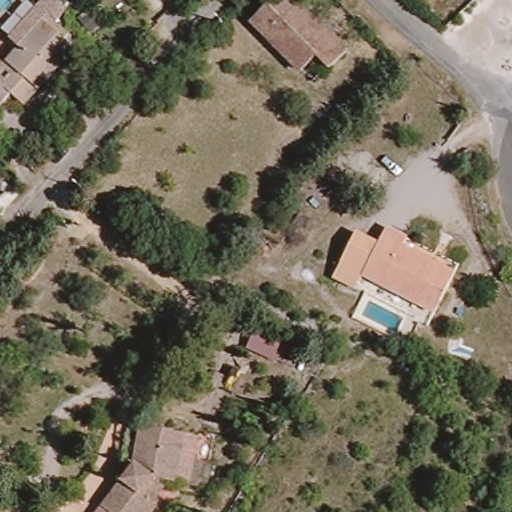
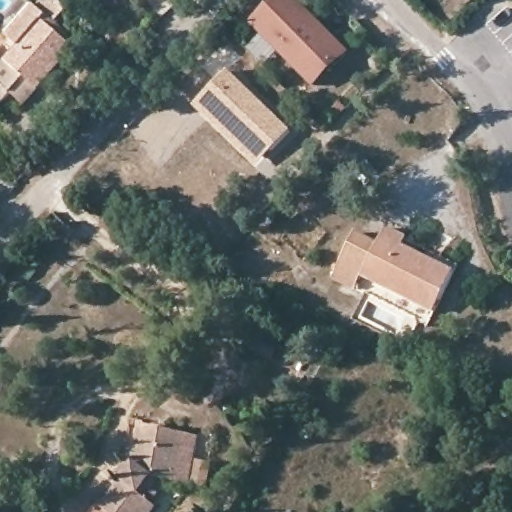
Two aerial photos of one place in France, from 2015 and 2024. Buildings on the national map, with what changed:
unchanged [(318,59),(303,71),(256,19),(275,0),(298,0),(346,51),(328,68),(318,59)]
unchanged [(38,12),(68,40),(63,45),(73,55),(18,110),(8,101),(0,108),(0,63),(2,65),(18,47),(10,40),(38,12)]
new [(228,70),(291,131),(256,166),(194,105),(228,70)]
unchanged [(434,318),(361,288),(355,297),(334,288),(355,240),(378,249),(384,235),(406,244),(401,255),(452,276),(434,318)]
unchanged [(235,353),(255,323),(297,345),(277,371),(235,353)]
unchanged [(147,512),(96,512),(127,469),(133,432),(174,436),(191,437),(186,480),(169,478),(152,505),(147,512)]

